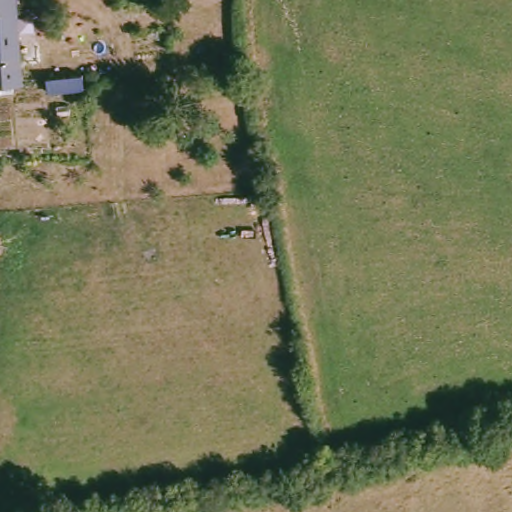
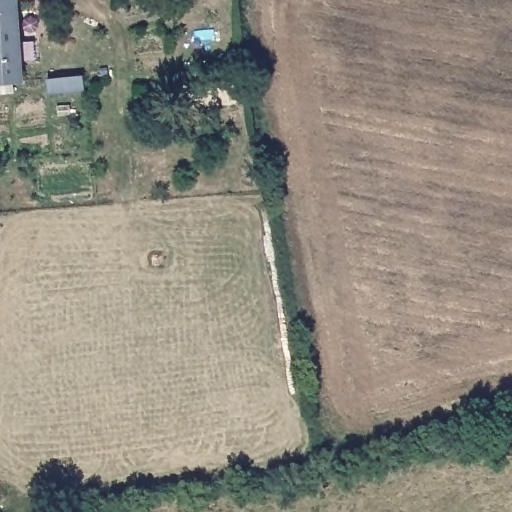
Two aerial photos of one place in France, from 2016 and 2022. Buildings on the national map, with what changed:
unchanged [(20,75),(0,77),(0,0),(14,0),(20,75)]
unchanged [(49,91),(48,79),(83,76),(84,90),(49,91)]

